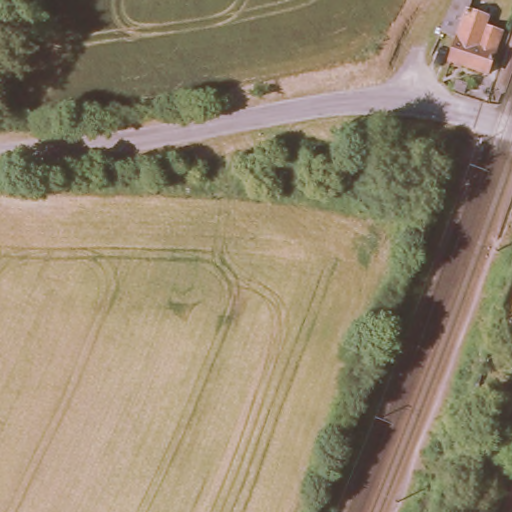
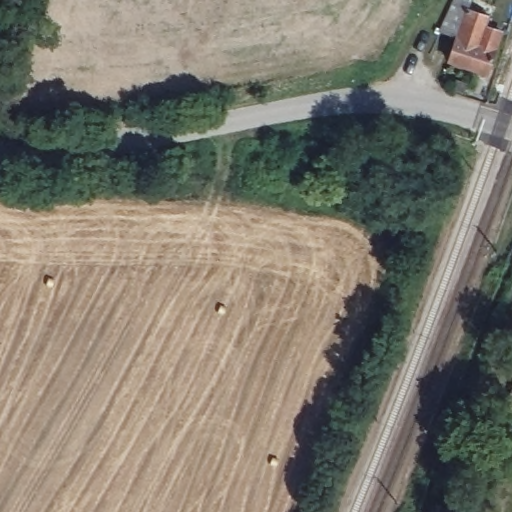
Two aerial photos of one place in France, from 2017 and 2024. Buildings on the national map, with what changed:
unchanged [(500,31),(487,74),(447,61),(455,38),(440,32),(455,0),(469,0),(465,10),(487,16),(484,26),(500,31)]
unchanged [(496,427),(512,380),(512,431),(496,427)]

